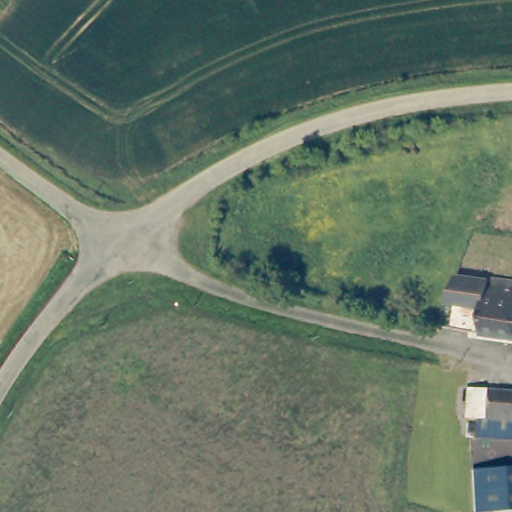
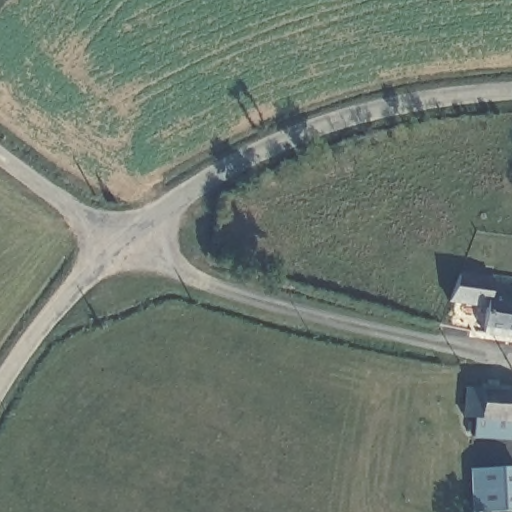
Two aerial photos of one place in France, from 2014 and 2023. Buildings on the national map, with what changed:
unchanged [(488,334),(491,305),(458,303),(461,274),(512,279),(512,337),(488,334)]
unchanged [(473,435),(472,416),(460,415),(464,388),(512,390),(512,436),(473,435)]
unchanged [(470,509),(469,467),(512,465),(512,508),(470,509)]

